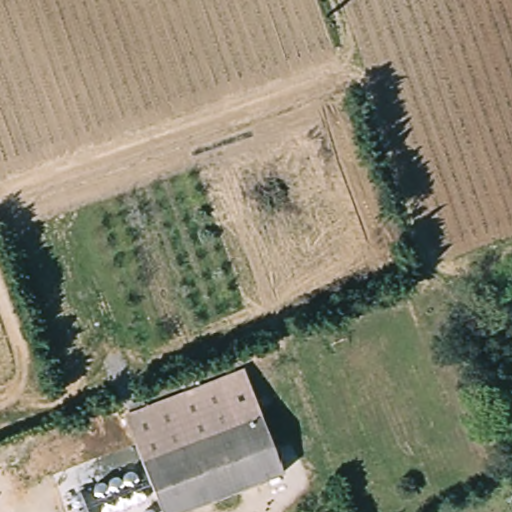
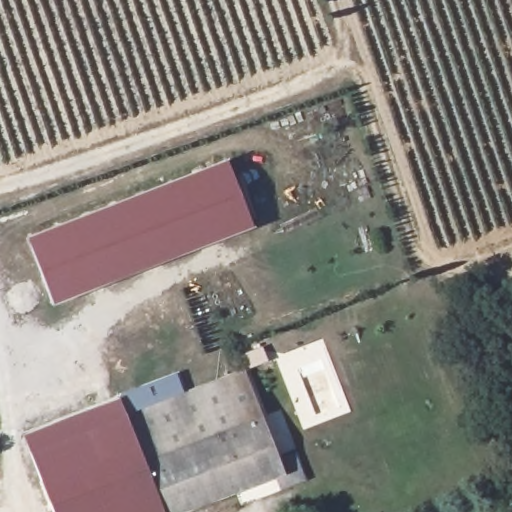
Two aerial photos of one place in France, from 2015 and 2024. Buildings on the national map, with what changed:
new [(253,227),(52,305),(26,237),(227,159),(253,227)]
unchanged [(284,475),(182,512),(165,512),(131,419),(248,376),(284,475)]
new [(118,397),(162,512),(52,512),(22,435),(118,397)]

